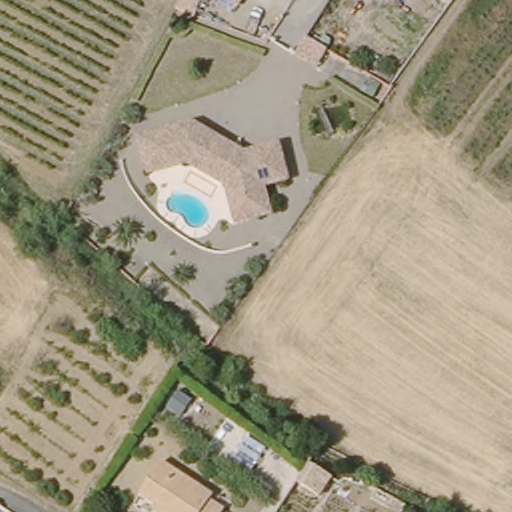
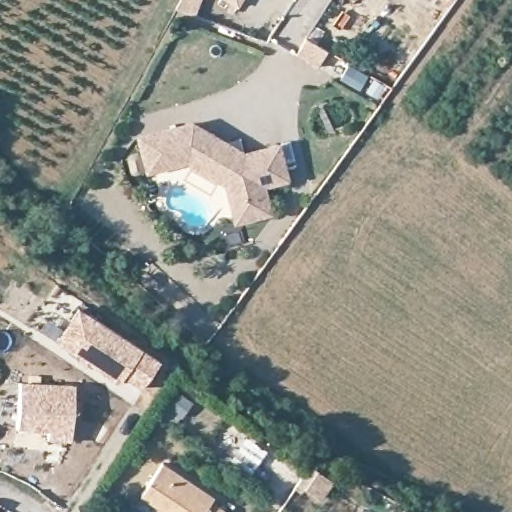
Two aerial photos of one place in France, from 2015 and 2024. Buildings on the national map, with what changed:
unchanged [(178,9),(181,2),(182,0),(210,0),(201,16),(178,9)]
unchanged [(241,5),(230,0),(244,0),(241,5)]
unchanged [(305,56),(317,36),(339,50),(329,70),(305,56)]
unchanged [(248,208),(223,177),(181,160),(143,170),(134,135),(188,120),(250,145),(283,136),(291,170),(266,176),(269,185),(273,202),(248,208)]
new [(80,303),(162,355),(145,382),(127,371),(115,390),(51,348),(80,303)]
new [(16,377),(69,383),(64,438),(42,436),(43,427),(11,424),(16,377)]
unchanged [(163,456),(223,500),(219,505),(229,512),(159,512),(160,511),(135,492),(163,456)]

